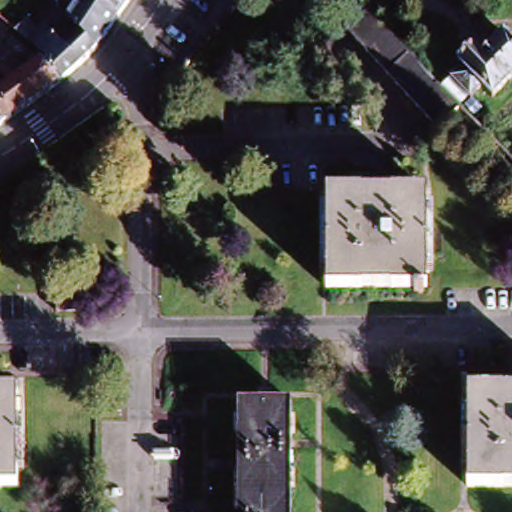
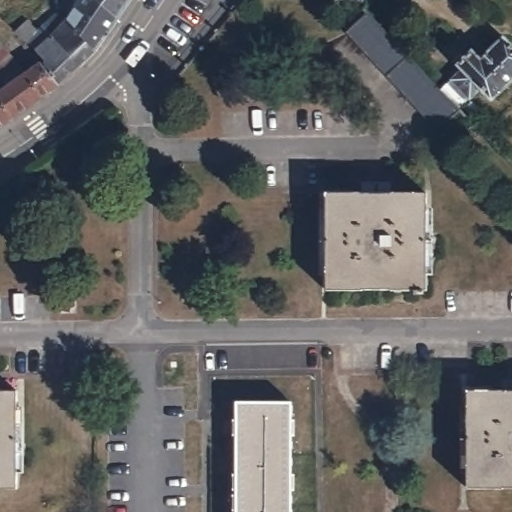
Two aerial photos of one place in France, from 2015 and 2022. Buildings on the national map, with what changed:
unchanged [(0,88),(0,59),(20,80),(34,70),(38,67),(39,66),(28,56),(8,38),(18,27),(30,37),(37,31),(52,17),(62,26),(71,14),(81,0),(128,0),(113,21),(101,39),(89,55),(88,56),(72,73),(54,89),(30,105),(9,120),(0,111),(0,93),(3,91),(0,88)]
unchanged [(444,94),(458,109),(437,130),(344,31),(366,10),(444,94)]
unchanged [(464,66),(459,62),(472,47),(482,56),(503,34),(512,42),(512,80),(497,96),(482,86),(472,96),(452,79),(464,66)]
unchanged [(0,127),(0,111),(9,120),(0,127)]
unchanged [(425,194),(424,290),(324,290),(326,192),(425,194)]
unchanged [(79,295),(78,313),(61,313),(61,295),(79,295)]
unchanged [(512,391),(512,488),(465,487),(467,390),(512,391)]
unchanged [(16,491),(0,491),(0,393),(17,393),(16,491)]
unchanged [(287,406),(285,512),(232,512),(234,405),(287,406)]

